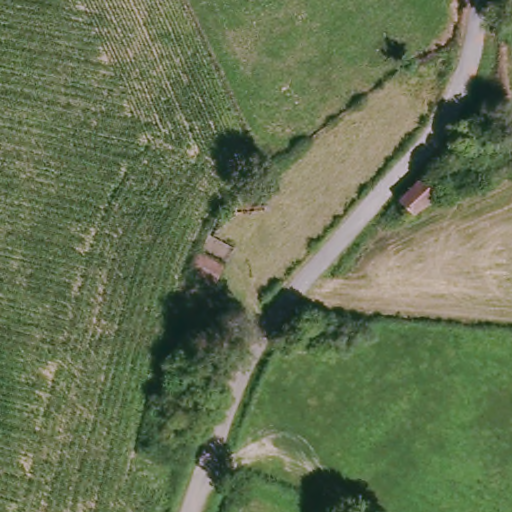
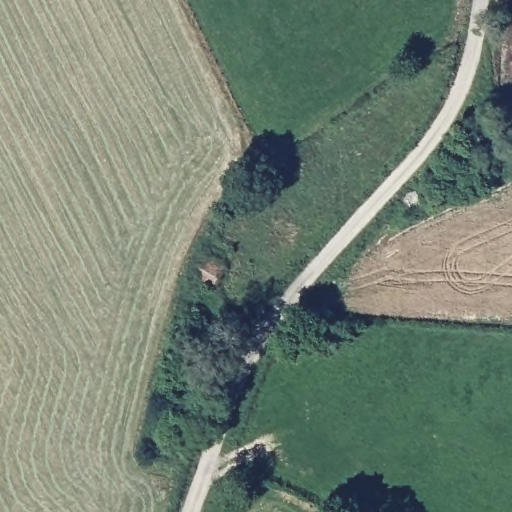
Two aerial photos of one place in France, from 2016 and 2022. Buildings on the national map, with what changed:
unchanged [(440,198),(415,217),(397,198),(420,176),(440,198)]
unchanged [(213,287),(185,272),(197,248),(227,263),(213,287)]

